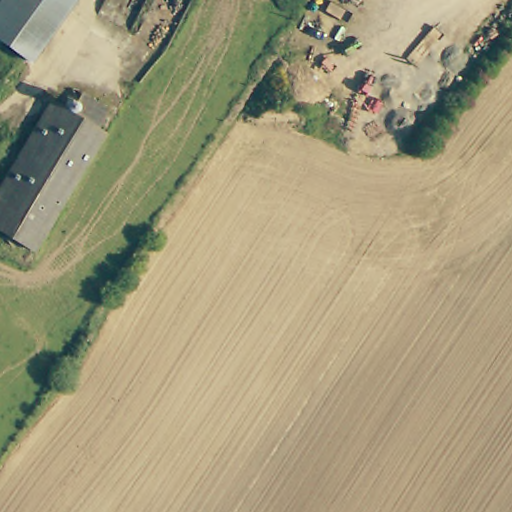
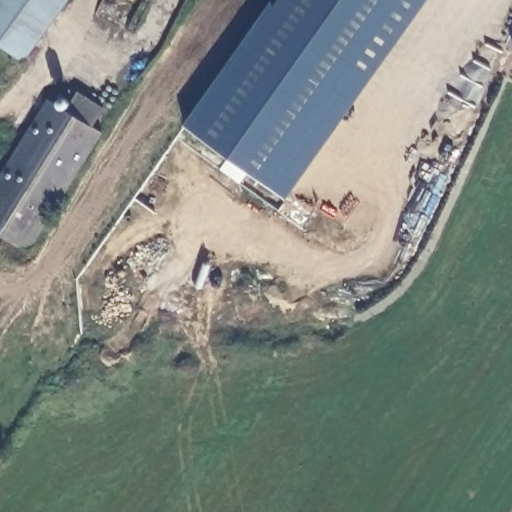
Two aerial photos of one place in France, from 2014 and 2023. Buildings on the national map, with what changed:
unchanged [(0,0),(64,0),(50,25),(28,56),(21,51),(0,37),(0,0)]
new [(288,196),(187,124),(270,0),(426,0),(288,196)]
unchanged [(79,93),(105,110),(92,129),(101,135),(30,249),(0,229),(0,177),(48,101),(67,112),(79,93)]

